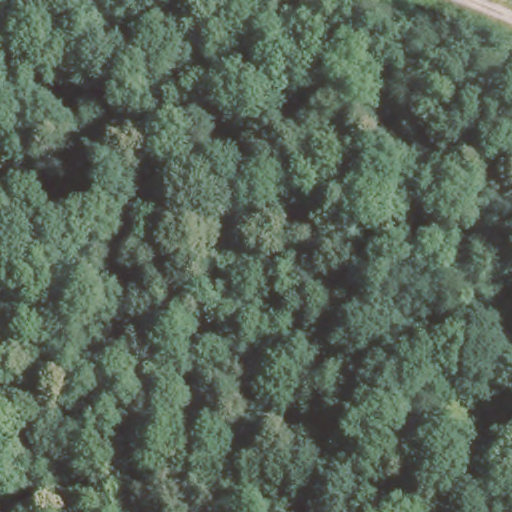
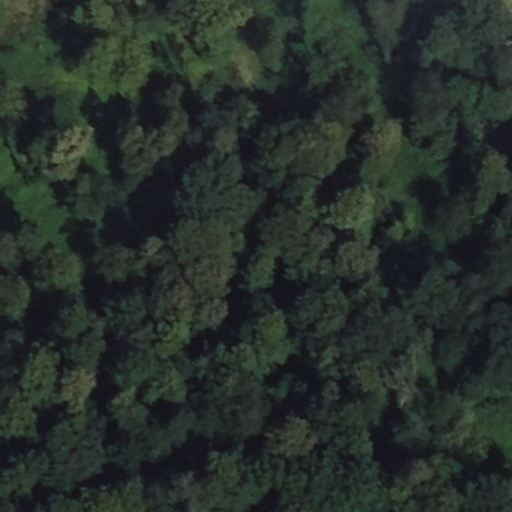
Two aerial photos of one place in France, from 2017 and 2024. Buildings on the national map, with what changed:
[]

